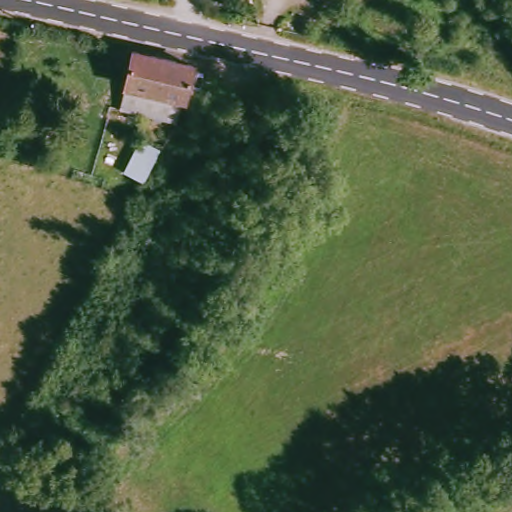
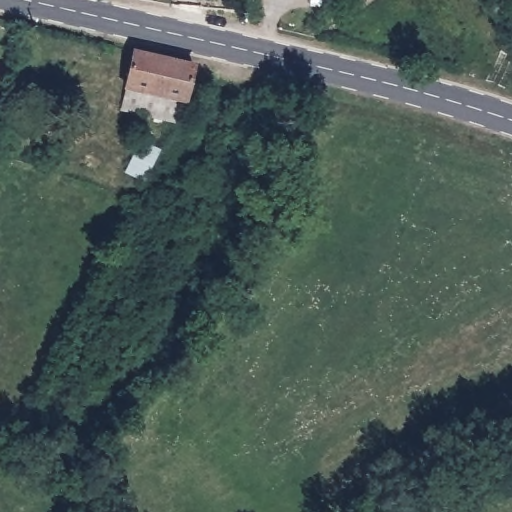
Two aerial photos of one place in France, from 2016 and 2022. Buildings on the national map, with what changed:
unchanged [(185,105),(180,104),(173,122),(117,108),(130,62),(132,52),(196,66),(185,105)]

